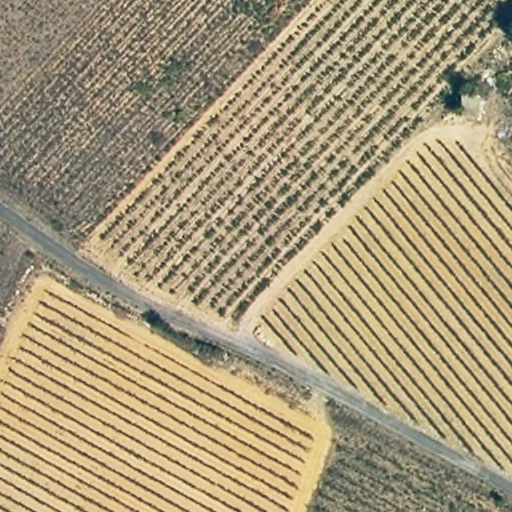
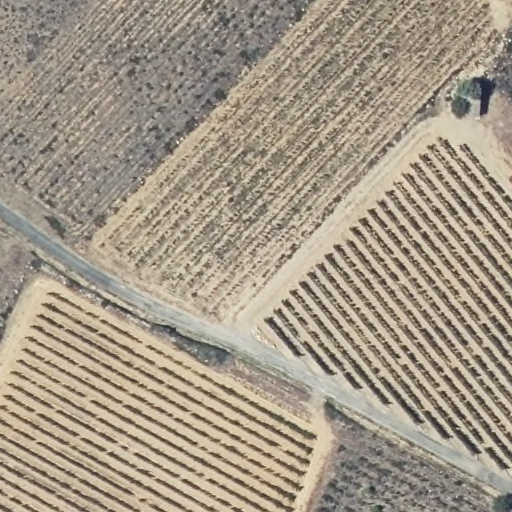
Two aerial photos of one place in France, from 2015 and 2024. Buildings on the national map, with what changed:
unchanged [(485,97),(483,120),(462,119),(464,93),(485,97)]

